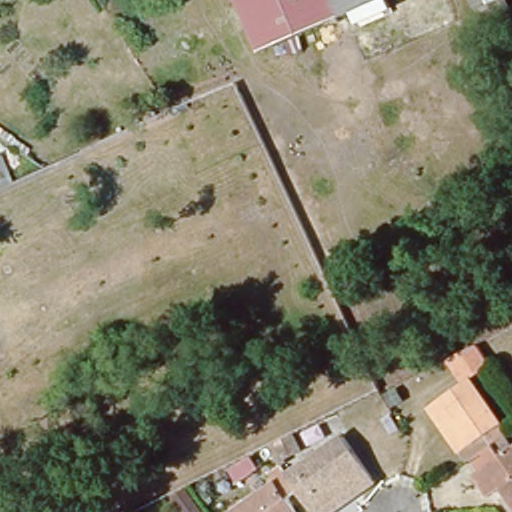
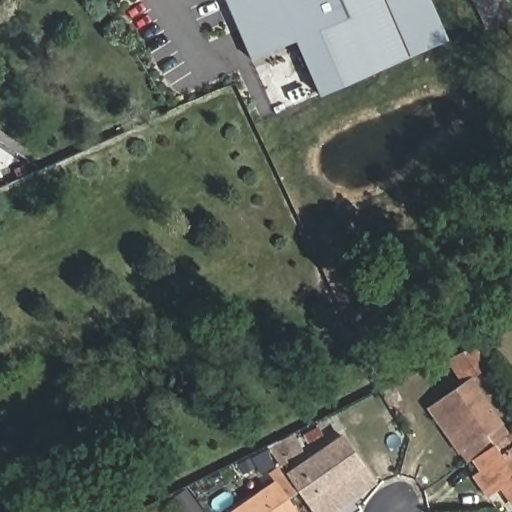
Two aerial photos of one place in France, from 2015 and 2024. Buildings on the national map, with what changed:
new [(454,41),(322,94),(300,42),(255,58),(230,0),(436,0),(454,41)]
demolished [(345,15),(313,28),(262,50),(241,0),(339,0),(345,15)]
demolished [(345,15),(339,0),(379,0),(345,15)]
unchanged [(473,0),(508,0),(512,9),(512,17),(485,29),(476,8),(473,0)]
unchanged [(10,183),(0,188),(0,161),(10,183)]
unchanged [(443,403),(465,387),(448,362),(455,359),(476,349),(490,369),(470,384),(500,427),(495,430),(503,442),(495,448),(492,450),(481,457),(467,466),(460,455),(430,412),(443,403)]
unchanged [(308,472),(304,466),(347,436),(375,477),(360,488),(363,493),(335,512),(318,512),(305,494),(304,491),(296,480),(308,472)]
unchanged [(512,452),(512,506),(488,470),(500,461),(492,450),(495,448),(503,442),(511,453),(512,452)]
unchanged [(301,512),(238,512),(280,482),(284,488),(296,480),(304,491),(292,499),(301,512)]
unchanged [(185,512),(174,498),(185,491),(201,512),(185,512)]

